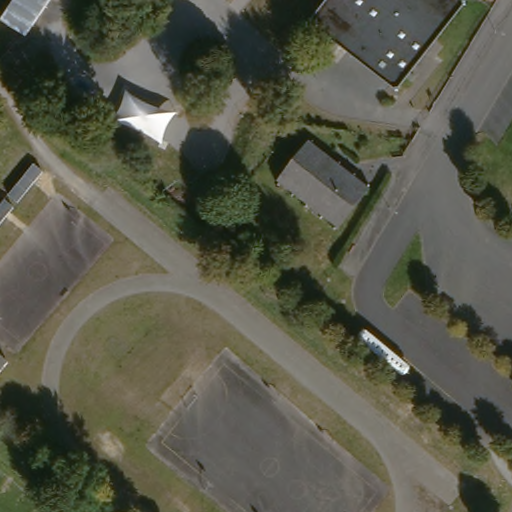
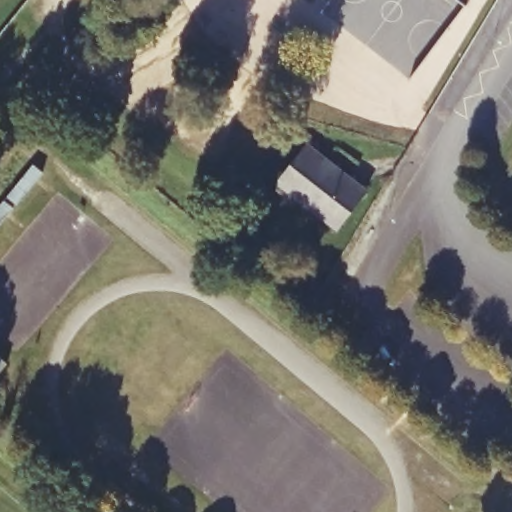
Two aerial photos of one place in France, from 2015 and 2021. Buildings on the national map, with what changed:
demolished [(400,91),(313,24),(329,3),(325,0),(461,0),(467,4),(400,91)]
unchanged [(308,147),(364,191),(336,228),(280,183),(308,147)]
unchanged [(0,375),(0,354),(11,362),(0,375)]

